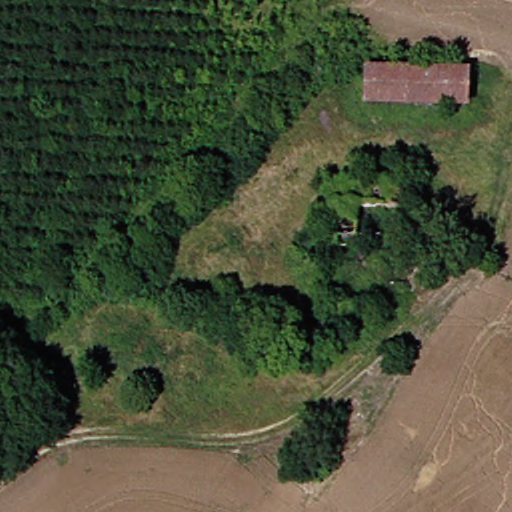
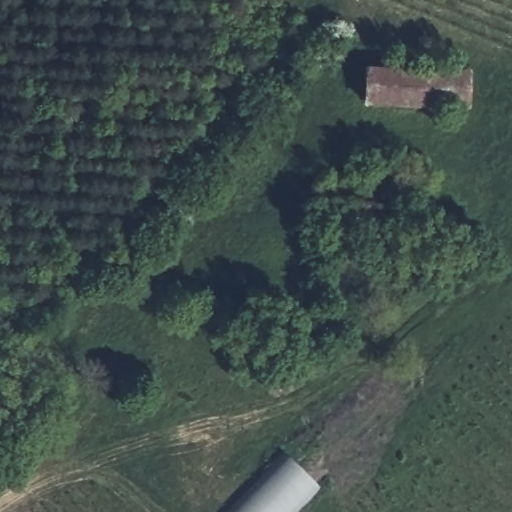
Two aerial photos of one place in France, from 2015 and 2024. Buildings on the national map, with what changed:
unchanged [(470,105),(370,97),(372,61),(473,70),(470,105)]
new [(234,512),(287,456),(319,485),(294,512),(234,512)]

